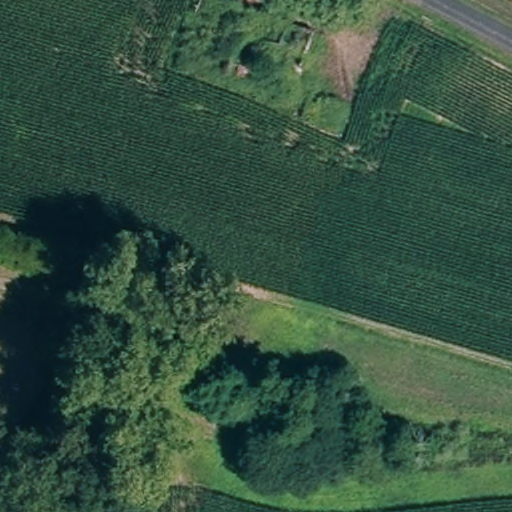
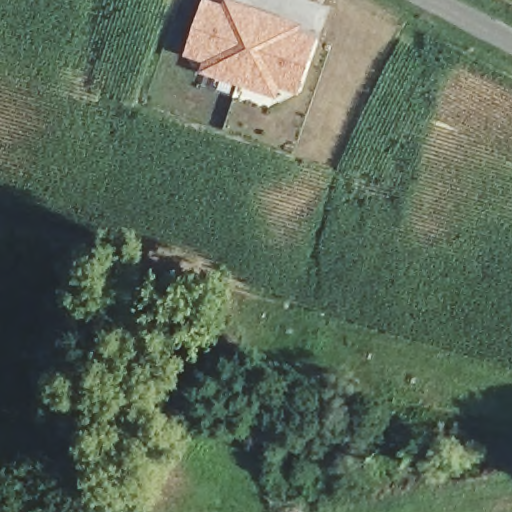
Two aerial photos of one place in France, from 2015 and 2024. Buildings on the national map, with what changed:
new [(279,98),(200,71),(204,60),(186,54),(205,0),(216,0),(224,3),(225,0),(237,0),(303,22),(302,30),(320,35),(300,94),(281,87),(279,98)]
demolished [(313,121),(321,100),(362,115),(354,135),(313,121)]

